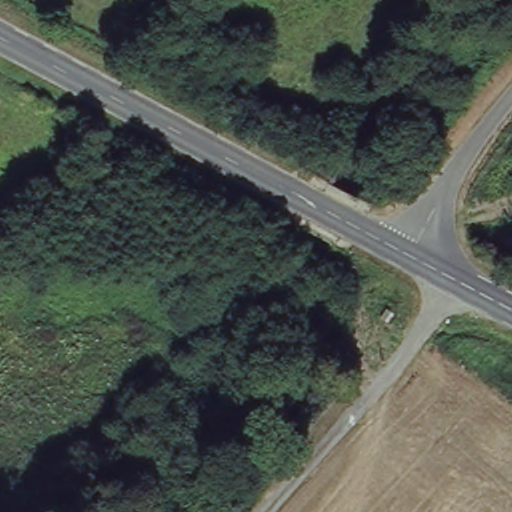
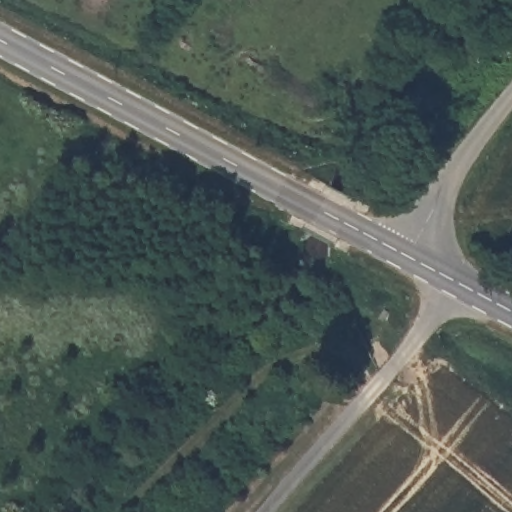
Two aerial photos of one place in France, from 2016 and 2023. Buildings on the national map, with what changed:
unchanged [(378,253),(385,258),(381,262),(373,258),(378,253)]

